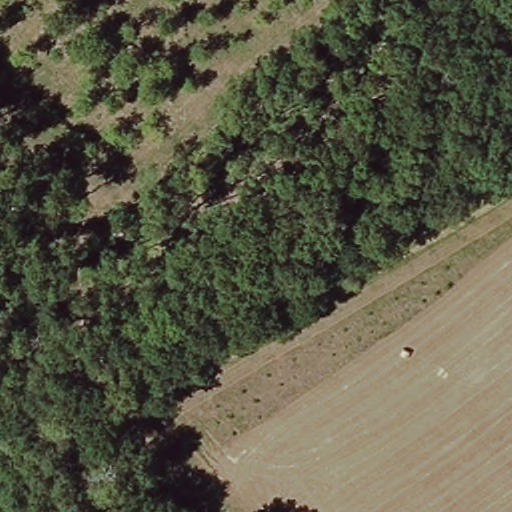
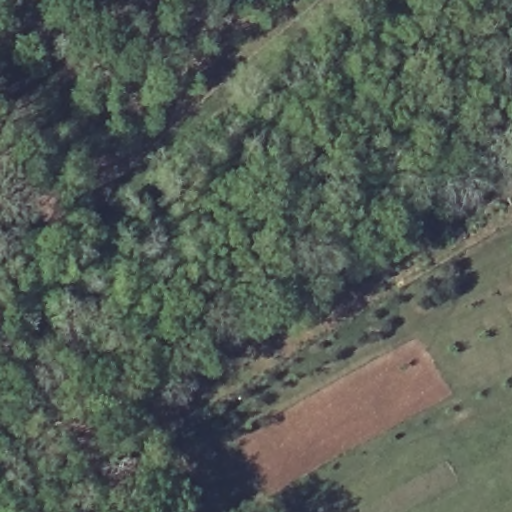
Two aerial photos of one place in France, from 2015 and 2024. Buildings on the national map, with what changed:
[]

